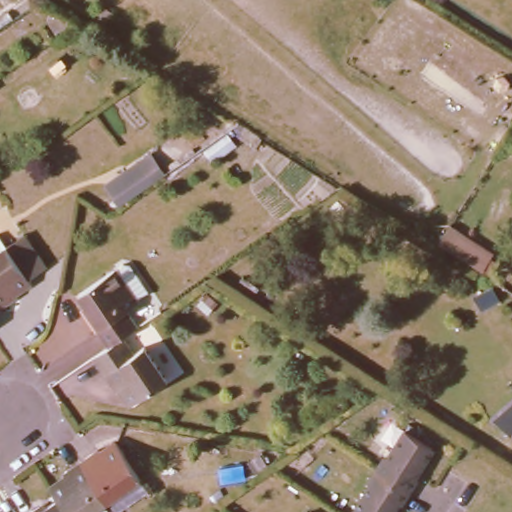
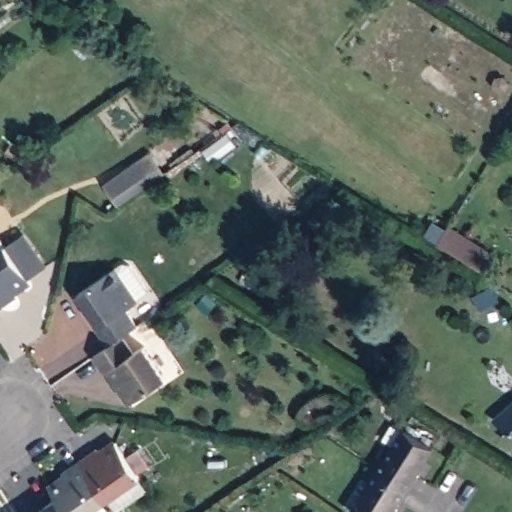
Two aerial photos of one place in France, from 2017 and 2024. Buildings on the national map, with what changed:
unchanged [(153,147),(171,175),(124,202),(109,180),(153,147)]
unchanged [(475,276),(438,247),(452,226),(489,252),(475,276)]
unchanged [(9,247),(24,235),(49,272),(33,282),(16,293),(19,297),(0,310),(0,233),(9,247)]
unchanged [(85,311),(88,309),(78,292),(113,268),(135,301),(125,307),(137,323),(123,333),(108,344),(85,311)]
unchanged [(133,350),(144,343),(167,377),(130,401),(119,385),(116,387),(94,353),(108,344),(123,333),(133,350)]
unchanged [(512,426),(499,417),(512,408),(512,426)]
unchanged [(356,506),(403,427),(437,448),(403,508),(401,507),(398,512),(364,512),(356,506)]
unchanged [(100,447),(103,451),(119,440),(143,475),(110,497),(84,458),(100,447)]
unchanged [(70,473),(68,469),(84,458),(110,497),(87,512),(71,512),(60,496),(53,484),(70,473)]
unchanged [(41,504),(44,507),(60,496),(71,512),(29,512),(41,504)]

